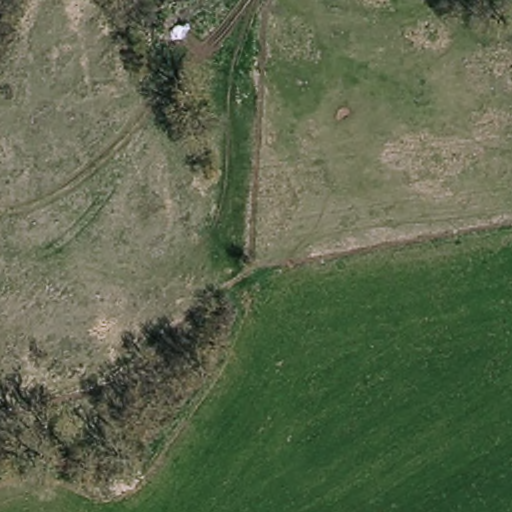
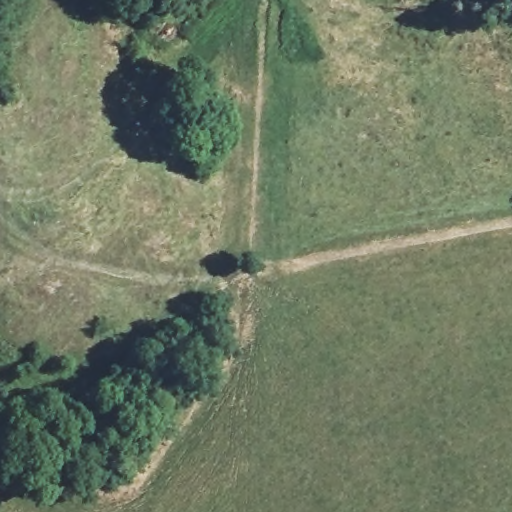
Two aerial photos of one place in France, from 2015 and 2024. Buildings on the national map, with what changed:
[]

